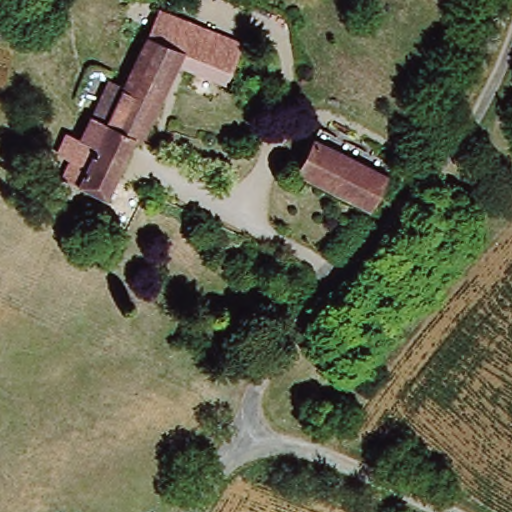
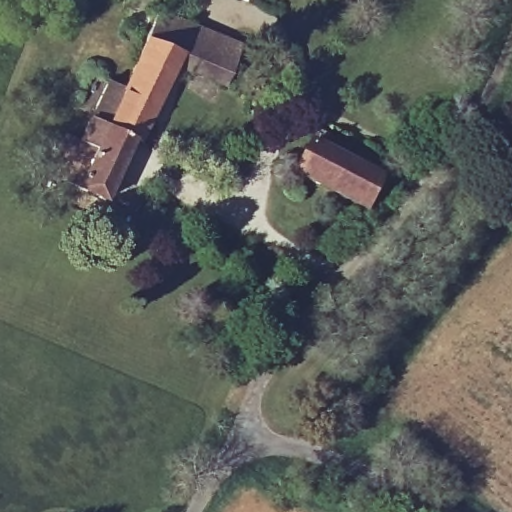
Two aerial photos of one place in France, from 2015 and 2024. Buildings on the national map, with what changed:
unchanged [(60,138),(77,144),(91,110),(112,119),(160,5),(180,14),(173,29),(200,39),(207,26),(223,33),(218,42),(235,50),(223,78),(220,86),(179,71),(146,144),(135,140),(111,199),(62,180),(68,166),(50,159),(60,138)]
unchanged [(307,143),(386,172),(372,208),(295,177),(307,143)]

